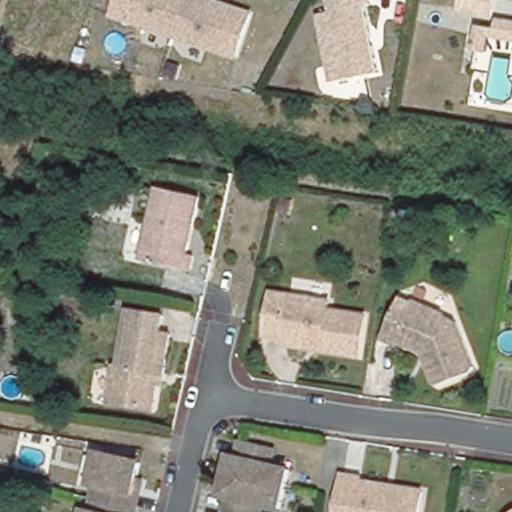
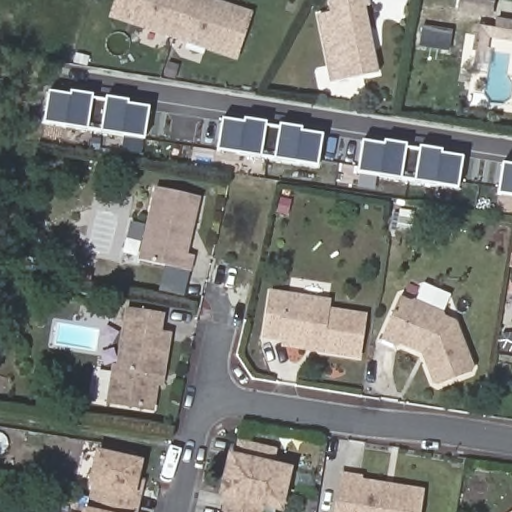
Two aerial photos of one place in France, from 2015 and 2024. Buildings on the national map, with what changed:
unchanged [(109,18),(115,0),(222,0),(253,10),(238,60),(109,18)]
unchanged [(316,12),(330,9),(328,0),(366,0),(367,5),(362,6),(366,30),(372,73),(327,80),(318,23),(316,12)]
unchanged [(459,14),(461,0),(492,0),(488,19),(459,14)]
unchanged [(488,39),(486,55),(469,54),(474,26),(496,28),(498,19),(512,21),(512,43),(488,39)]
new [(425,26),(453,30),(451,48),(423,44),(425,26)]
new [(50,93),(148,109),(143,139),(45,123),(50,93)]
new [(219,150),(223,121),(321,136),(317,165),(261,158),(219,150)]
new [(421,146),(442,150),(441,154),(462,158),(456,190),(358,174),(365,137),(399,143),(398,147),(420,150),(421,146)]
new [(512,164),(512,198),(498,195),(503,163),(512,164)]
unchanged [(182,251),(189,252),(187,265),(138,258),(149,189),(190,195),(182,251)]
unchanged [(384,329),(407,288),(452,314),(476,365),(439,382),(426,350),(384,329)]
unchanged [(268,289),(324,298),(323,305),(364,313),(358,354),(315,346),(316,340),(262,332),(268,289)]
unchanged [(126,309),(163,315),(161,330),(172,332),(166,376),(159,374),(153,409),(107,402),(112,367),(117,368),(126,309)]
unchanged [(241,459),(244,445),(275,453),(272,466),(291,470),(282,509),(264,505),(263,512),(229,512),(229,510),(232,497),(224,496),(233,457),(241,459)]
unchanged [(137,463),(133,479),(129,496),(125,494),(122,506),(121,512),(81,512),(81,509),(87,511),(90,498),(93,486),(87,484),(95,453),(137,463)]
unchanged [(340,504),(346,470),(362,473),(361,479),(388,483),(399,484),(423,489),(419,512),(339,512),(340,504)]
unchanged [(512,511),(512,512),(510,512),(512,511)]

